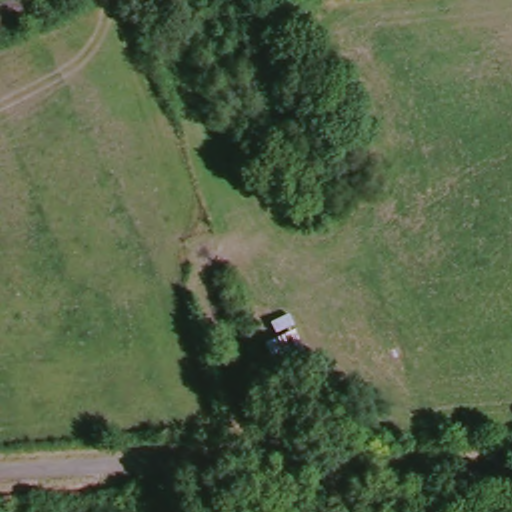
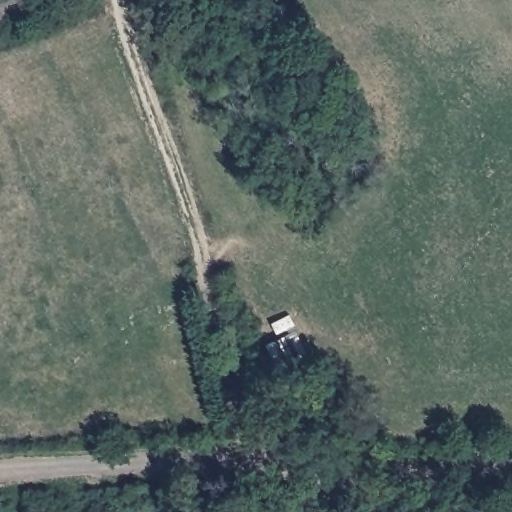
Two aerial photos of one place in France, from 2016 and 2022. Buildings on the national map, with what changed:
unchanged [(269,346),(290,336),(287,330),(300,324),(320,366),(290,384),(269,346)]

